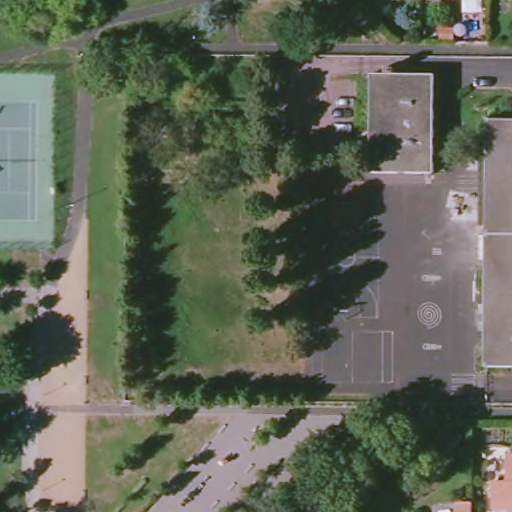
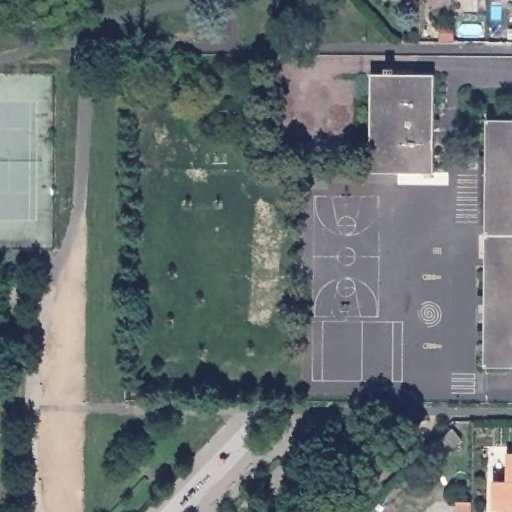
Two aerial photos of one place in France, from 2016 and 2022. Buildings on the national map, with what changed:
unchanged [(437,73),(436,172),(372,172),(373,74),(437,73)]
unchanged [(512,366),(482,365),(483,118),(512,118),(512,366)]
unchanged [(493,480),(510,480),(511,452),(512,452),(512,507),(493,507),(493,480)]
unchanged [(473,502),(473,512),(457,512),(458,501),(473,502)]

